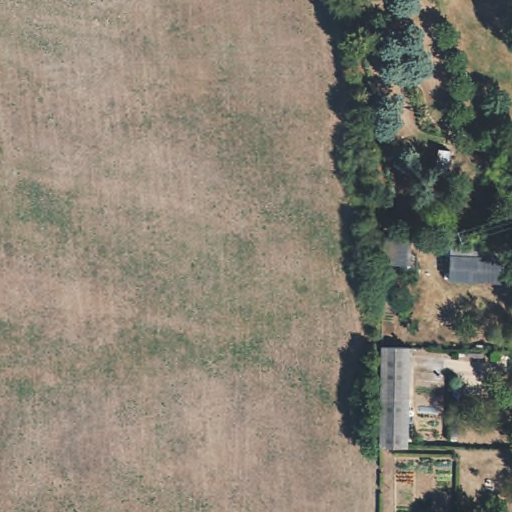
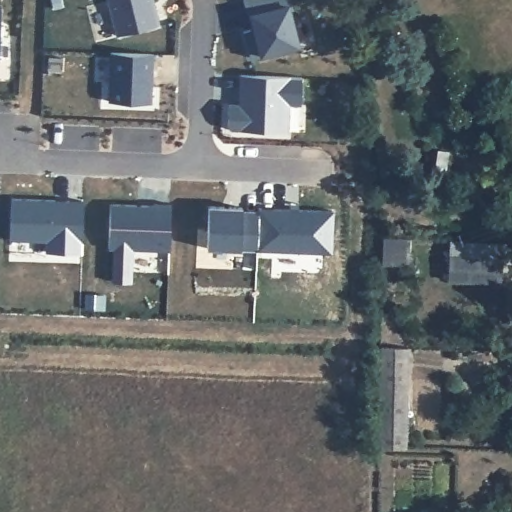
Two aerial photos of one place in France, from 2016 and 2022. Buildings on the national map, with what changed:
new [(119,36),(109,0),(156,0),(162,25),(119,36)]
new [(250,58),(242,31),(253,30),(248,12),(244,0),(289,0),(290,3),(301,46),(250,58)]
new [(109,101),(111,52),(155,54),(152,102),(109,101)]
new [(302,105),(291,105),(291,131),(231,130),(231,104),(242,105),(243,77),(303,78),(302,105)]
unchanged [(449,151),(446,171),(433,168),(435,150),(449,151)]
new [(85,252),(49,252),(48,240),(12,240),(12,197),(57,199),(57,206),(69,207),(69,199),(86,201),(85,252)]
new [(169,250),(134,249),(134,281),(112,280),(113,249),(110,250),(110,203),(172,203),(169,250)]
new [(258,250),(240,249),(207,248),(209,204),(242,206),(242,209),(260,210),(258,250)]
new [(335,254),(258,250),(260,210),(335,211),(335,254)]
unchanged [(410,239),(410,265),(382,264),(382,237),(410,239)]
unchanged [(502,282),(450,280),(450,256),(451,241),(492,243),(491,258),(502,259),(502,282)]
unchanged [(381,347),(410,349),(407,448),(380,447),(381,347)]

